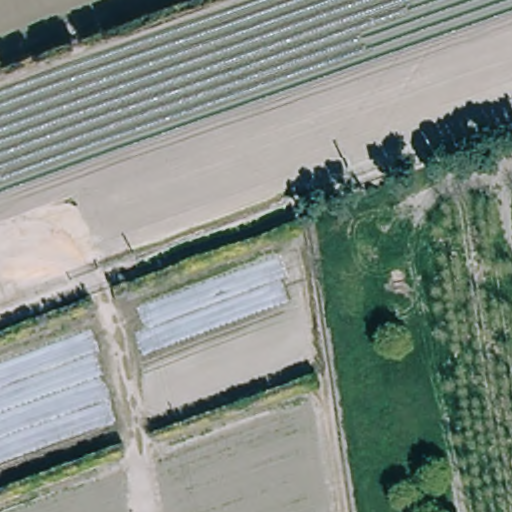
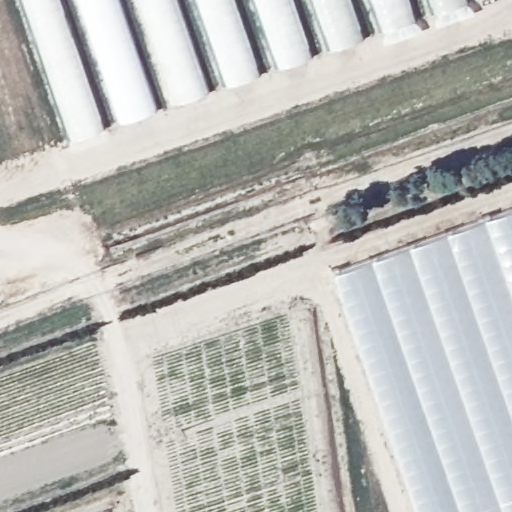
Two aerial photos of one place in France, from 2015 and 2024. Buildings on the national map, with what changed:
new [(69,140),(20,0),(58,0),(103,129),(69,140)]
new [(116,0),(154,111),(123,123),(80,0),(116,0)]
new [(174,104),(138,0),(174,0),(206,94),(174,104)]
new [(232,0),(259,75),(226,88),(196,0),(232,0)]
new [(278,69),(254,0),(290,0),(310,58),(278,69)]
new [(348,0),(361,39),(329,50),(312,0),(348,0)]
new [(381,33),(370,0),(407,0),(414,21),(381,33)]
new [(466,0),(467,3),(434,14),(429,0),(466,0)]
new [(329,269),(512,203),(512,512),(415,512),(329,269)]

